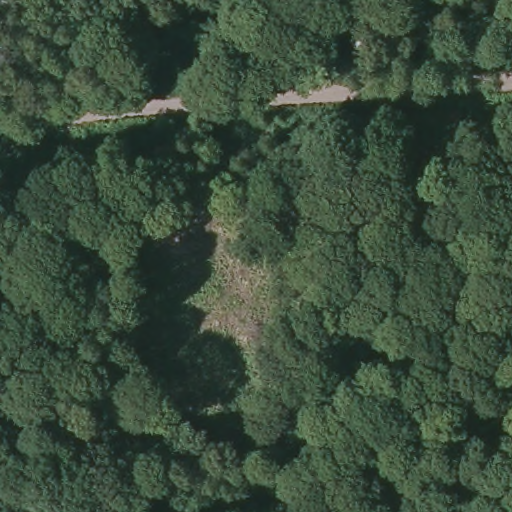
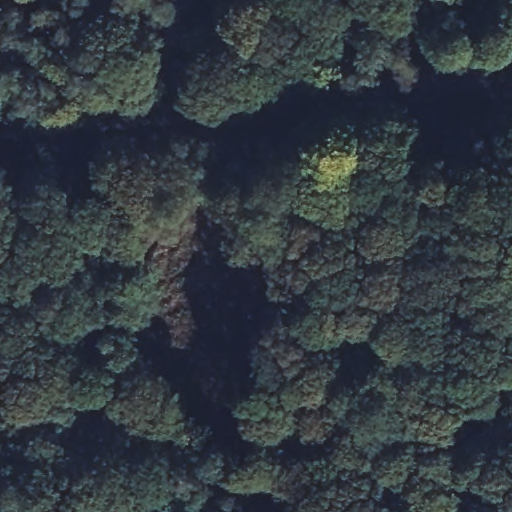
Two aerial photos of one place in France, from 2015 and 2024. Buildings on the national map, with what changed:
unchanged [(192,70),(194,91),(171,93),(170,71),(192,70)]

